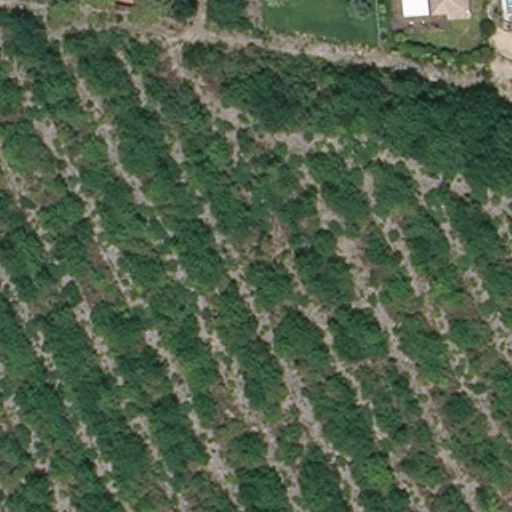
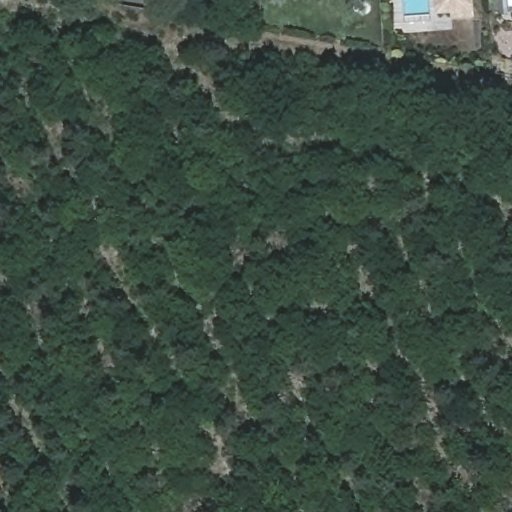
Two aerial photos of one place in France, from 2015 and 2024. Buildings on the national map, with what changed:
unchanged [(458,15),(458,9),(443,10),(443,0),(473,0),(474,14),(458,15)]

